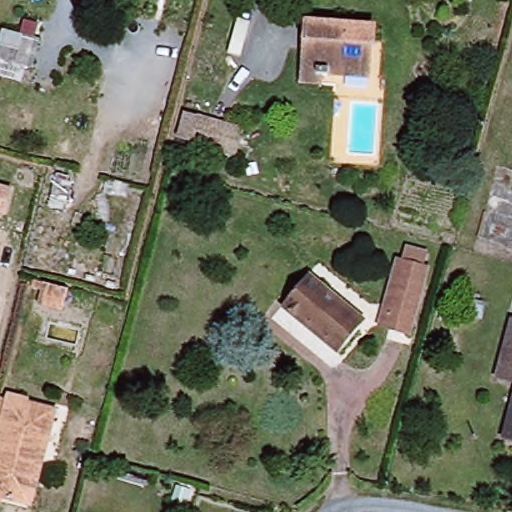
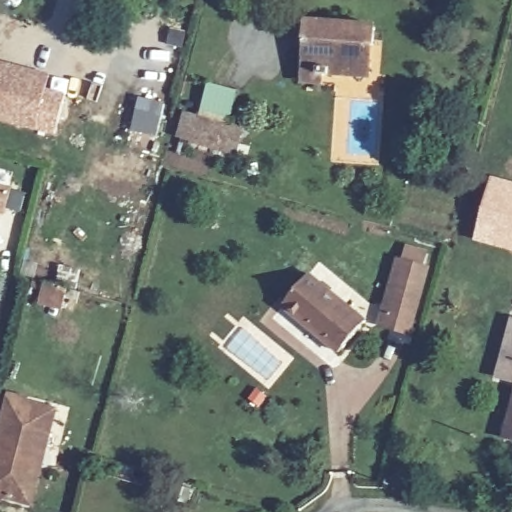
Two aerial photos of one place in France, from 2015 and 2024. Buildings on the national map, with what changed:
unchanged [(377,26),(369,73),(321,65),(319,80),(300,76),(311,16),(377,26)]
demolished [(1,30),(38,41),(31,71),(0,64),(0,36),(1,30)]
new [(48,133),(29,128),(0,121),(0,64),(6,66),(42,75),(39,89),(57,94),(48,133)]
unchanged [(195,116),(239,128),(232,153),(189,142),(195,116)]
new [(512,181),(512,251),(472,241),(490,175),(512,181)]
unchanged [(13,189),(6,216),(0,215),(0,185),(13,189)]
unchanged [(381,325),(396,260),(401,261),(405,249),(428,256),(426,269),(412,333),(381,325)]
unchanged [(286,308),(313,275),(370,324),(343,357),(286,308)]
unchanged [(64,311),(36,302),(40,293),(41,285),(69,291),(66,302),(64,311)]
unchanged [(512,335),(512,380),(500,377),(512,335)]
unchanged [(512,439),(502,436),(512,401),(512,439)]
unchanged [(35,506),(25,503),(0,495),(0,444),(11,402),(50,412),(59,414),(35,506)]

